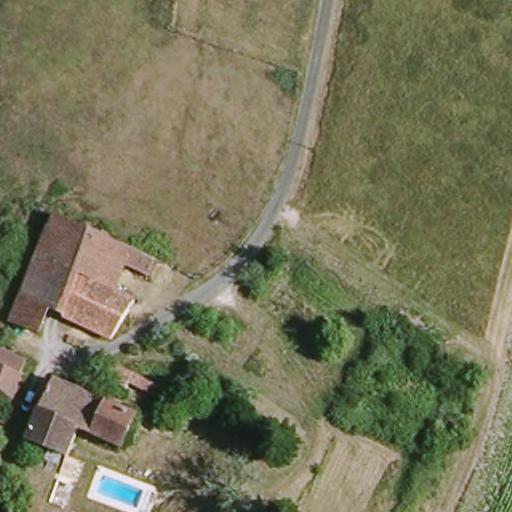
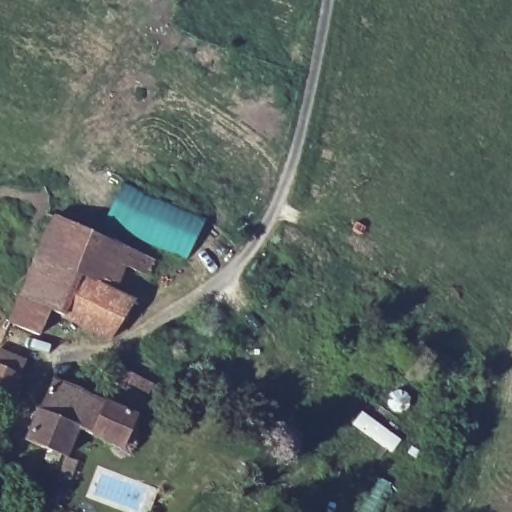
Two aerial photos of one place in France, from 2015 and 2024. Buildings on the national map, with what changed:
new [(124,180),(207,219),(186,261),(146,242),(105,219),(124,180)]
unchanged [(162,262),(155,278),(130,267),(119,293),(44,260),(62,220),(162,262)]
unchanged [(44,260),(119,293),(139,302),(121,337),(115,341),(54,315),(45,335),(16,321),(25,302),(44,260)]
unchanged [(0,389),(0,349),(27,361),(14,396),(0,389)]
unchanged [(107,375),(100,370),(105,362),(106,356),(125,351),(115,367),(156,387),(150,396),(130,386),(126,394),(104,383),(107,375)]
unchanged [(56,377),(134,412),(120,443),(80,426),(69,452),(30,437),(56,377)]

